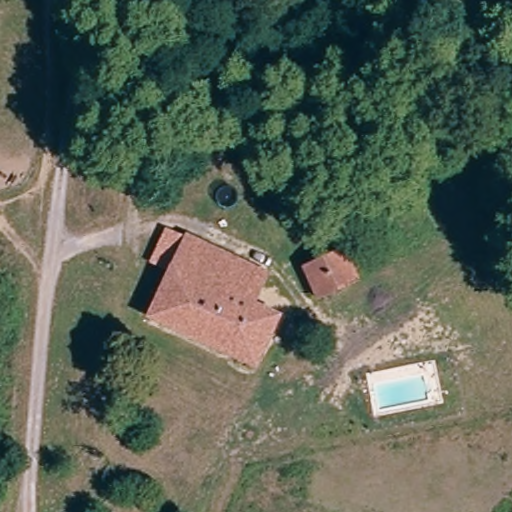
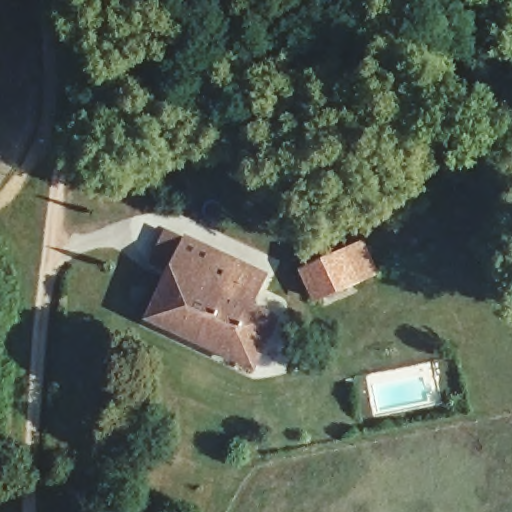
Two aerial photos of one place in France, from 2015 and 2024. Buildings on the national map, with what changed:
unchanged [(169,272),(157,265),(176,230),(186,239),(267,276),(254,307),(276,321),(254,370),(147,318),(169,272)]
unchanged [(359,286),(324,305),(309,274),(344,256),(359,286)]

